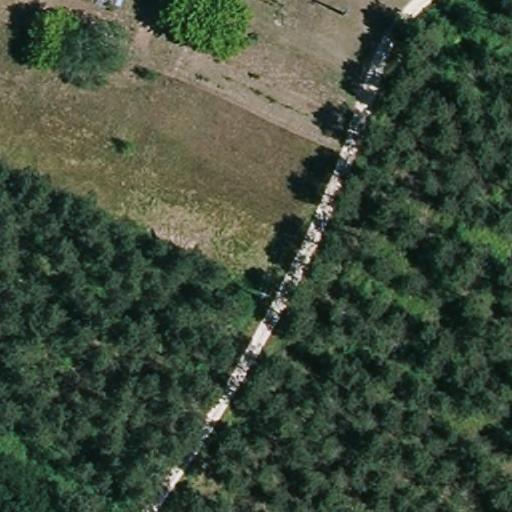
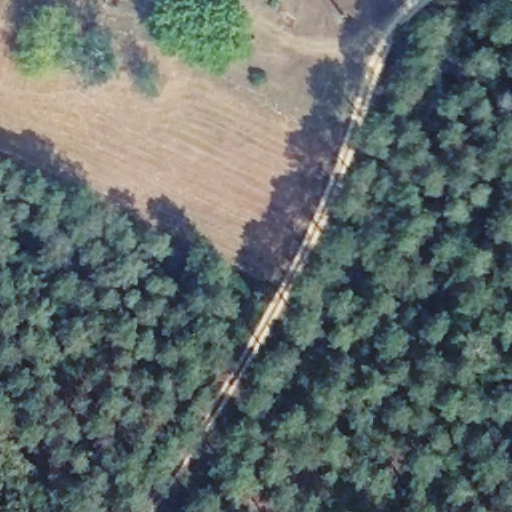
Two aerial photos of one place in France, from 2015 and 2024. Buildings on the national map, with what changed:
unchanged [(101,0),(126,0),(123,6),(101,0)]
unchanged [(150,0),(152,0),(170,8),(152,54),(133,47),(150,0)]

